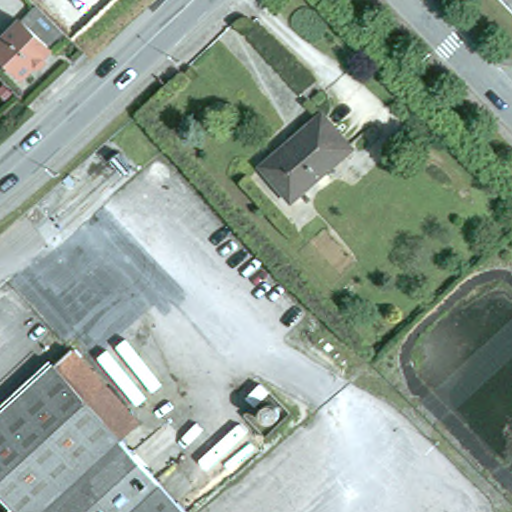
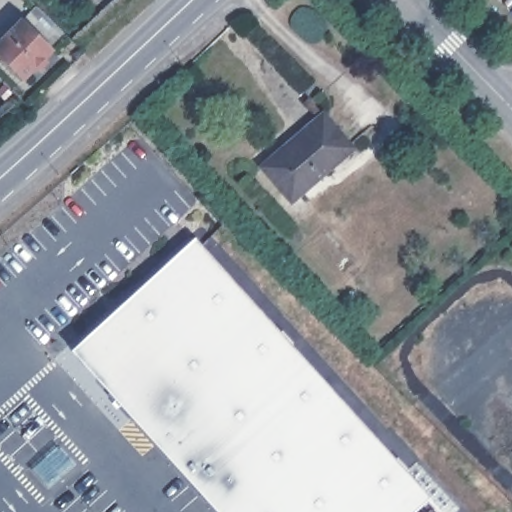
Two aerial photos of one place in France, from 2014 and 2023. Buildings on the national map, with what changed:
unchanged [(46,60),(18,87),(0,69),(0,46),(32,15),(59,42),(44,57),(46,60)]
unchanged [(353,148),(291,201),(263,166),(324,114),(353,148)]
new [(219,512),(70,351),(194,237),(429,496),(442,512),(219,512)]
demolished [(0,495),(0,407),(68,345),(134,419),(118,433),(183,507),(178,512),(3,512),(10,506),(0,495)]

